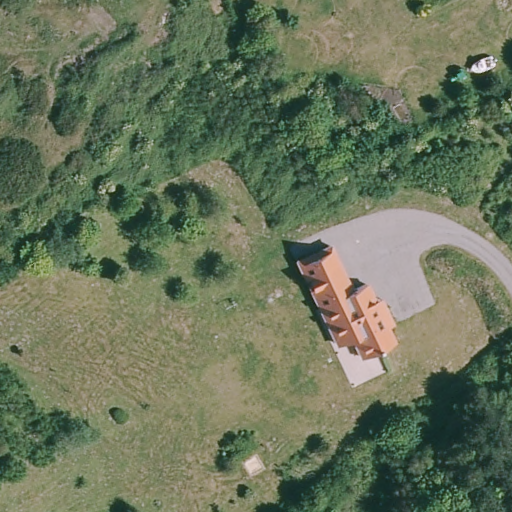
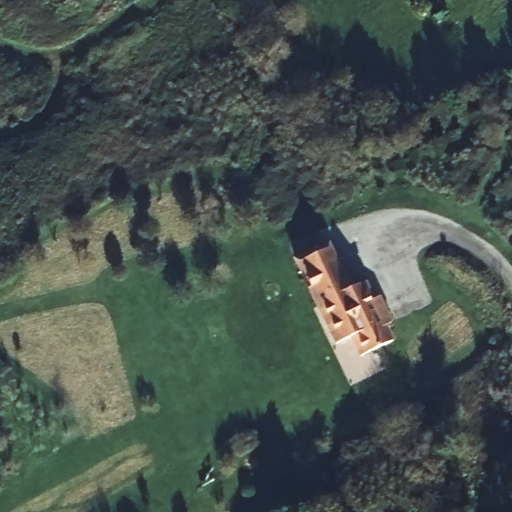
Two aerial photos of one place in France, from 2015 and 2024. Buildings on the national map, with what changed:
unchanged [(382,304),(390,321),(383,325),(391,340),(361,356),(351,336),(336,344),(292,255),(322,240),(342,281),(358,273),(370,299),(378,295),(382,304)]

